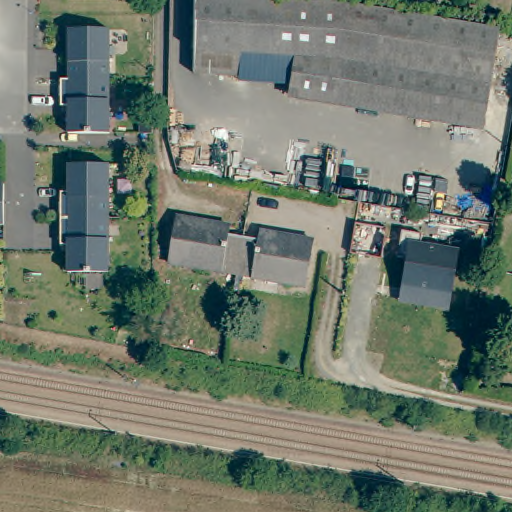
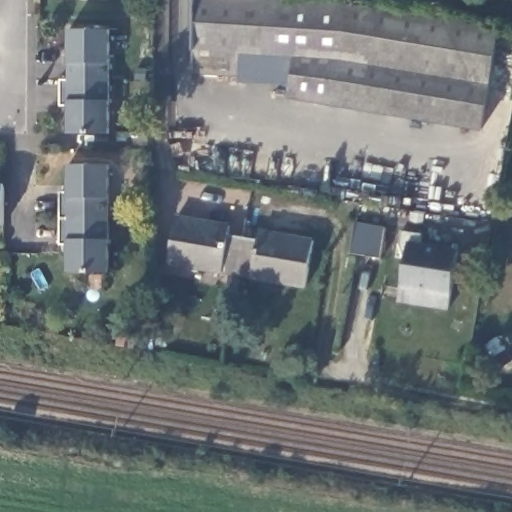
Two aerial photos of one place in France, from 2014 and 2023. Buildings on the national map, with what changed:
unchanged [(69,2),(69,0),(111,0),(110,3),(69,2)]
unchanged [(295,64),(240,58),(239,79),(194,75),(197,0),(229,0),(276,1),(306,3),(386,14),(498,34),(482,138),(291,105),(295,64)]
unchanged [(229,0),(276,0),(276,1),(229,0)]
unchanged [(68,31),(110,32),(109,82),(68,81),(68,31)]
unchanged [(61,81),(68,81),(109,82),(108,136),(67,135),(67,108),(60,108),(60,81),(61,81)]
unchanged [(59,194),(66,194),(67,166),(108,167),(107,221),(59,220),(59,194)]
unchanged [(2,185),(2,227),(0,226),(0,185),(2,185)]
unchanged [(169,264),(177,218),(231,227),(229,234),(245,237),(260,239),(261,232),(315,242),(309,272),(307,287),(240,275),(169,264)]
unchanged [(107,221),(106,275),(65,274),(66,247),(58,247),(59,220),(107,221)]
unchanged [(386,229),(383,244),(352,239),(353,224),(386,229)]
unchanged [(423,236),(421,247),(459,254),(454,280),(449,312),(425,307),(428,292),(402,287),(404,278),(407,260),(398,259),(402,233),(423,236)]

